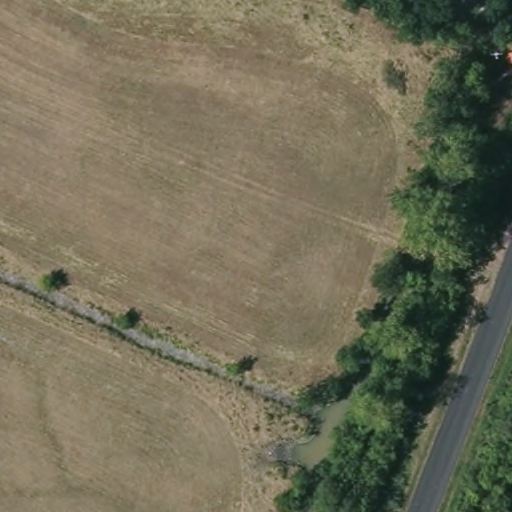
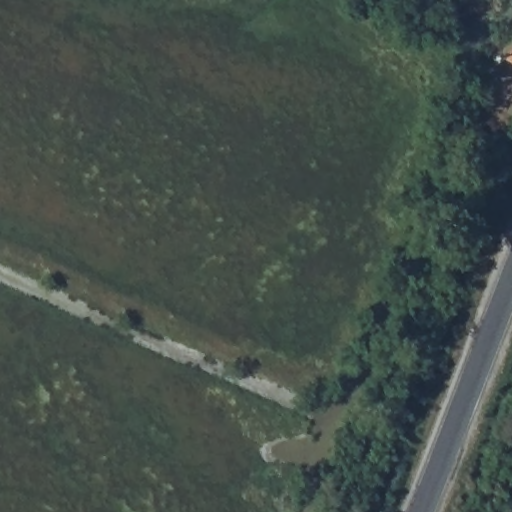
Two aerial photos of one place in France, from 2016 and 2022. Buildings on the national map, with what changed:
unchanged [(512,38),(512,66),(505,62),(512,38)]

